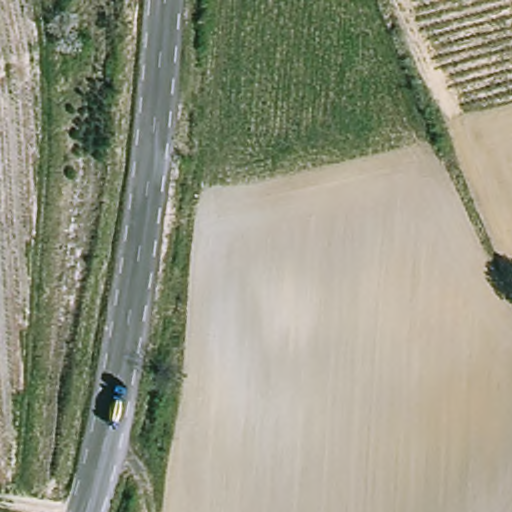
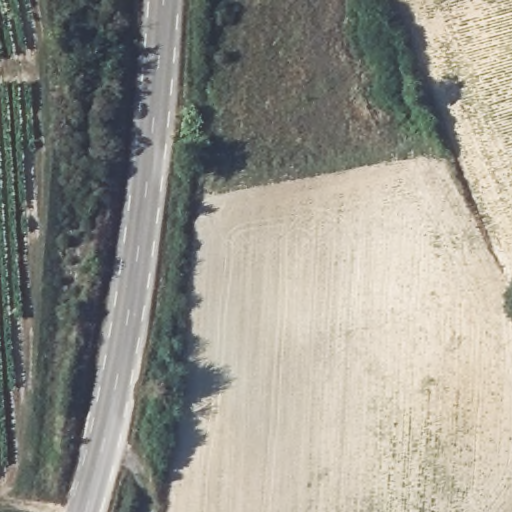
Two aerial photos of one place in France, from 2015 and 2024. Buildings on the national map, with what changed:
unchanged [(154,431),(160,406),(188,414),(181,436),(154,431)]

